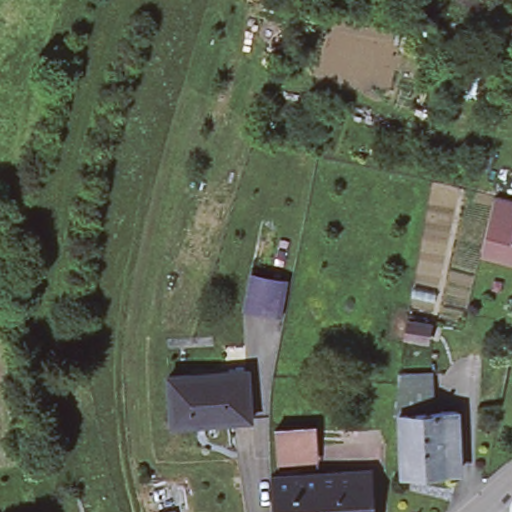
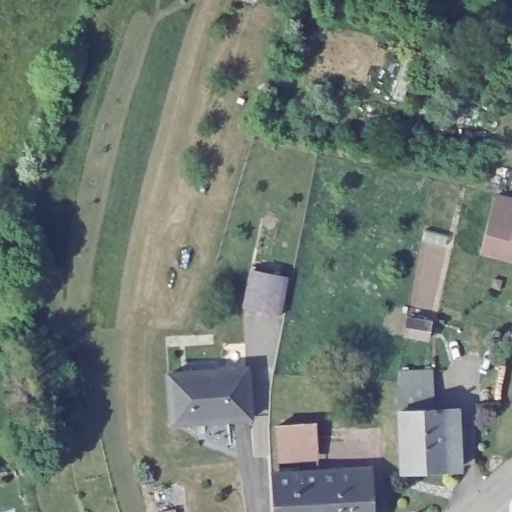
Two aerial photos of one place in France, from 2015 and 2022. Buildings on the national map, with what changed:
unchanged [(512,260),(482,252),(497,195),(512,199),(512,260)]
unchanged [(288,276),(281,315),(245,307),(253,269),(288,276)]
unchanged [(502,281),(500,290),(490,287),(493,279),(502,281)]
unchanged [(430,321),(428,339),(407,337),(410,319),(430,321)]
unchanged [(250,367),(254,416),(175,425),(170,373),(250,367)]
unchanged [(429,376),(430,413),(395,415),(396,417),(390,417),(395,377),(429,376)]
unchanged [(395,415),(430,413),(455,413),(456,470),(398,473),(396,417),(395,415)]
unchanged [(317,425),(320,456),(279,458),(276,427),(317,425)]
unchanged [(372,512),(321,512),(318,472),(370,469),(372,512)]
unchanged [(321,512),(273,512),(271,475),(318,472),(321,512)]

